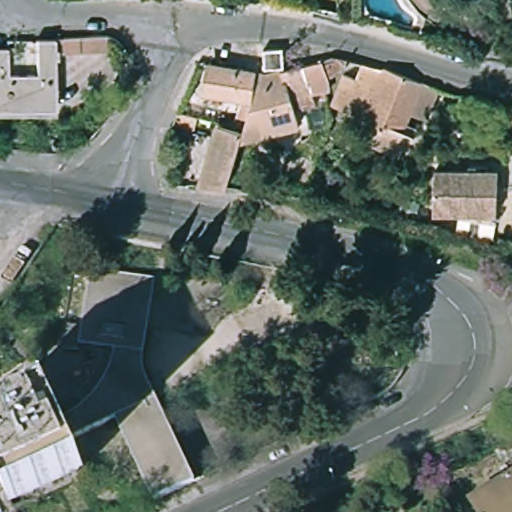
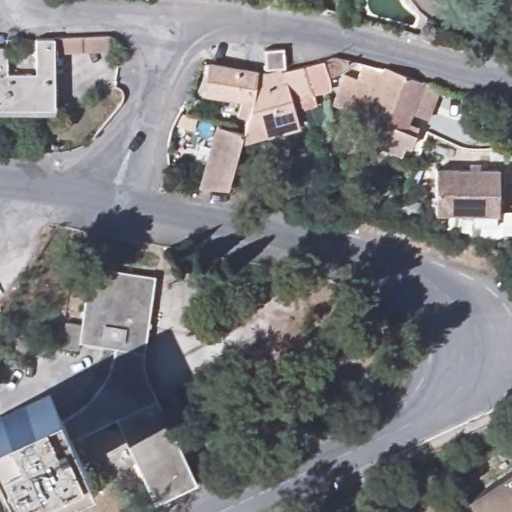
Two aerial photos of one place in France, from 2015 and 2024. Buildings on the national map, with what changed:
unchanged [(6,68),(32,68),(33,35),(53,34),(52,84),(46,84),(46,90),(45,96),(43,100),(38,103),(32,102),(30,99),(28,97),(0,98),(0,43),(6,43),(6,68)]
unchanged [(258,54),(278,53),(280,72),(259,74),(258,54)]
unchanged [(261,82),(304,72),(334,59),(358,65),(326,83),(318,86),(323,108),(317,109),(315,102),(308,103),(311,118),(300,120),(299,117),(287,119),(291,137),(234,152),(237,137),(238,132),(240,125),(250,80),(261,82)]
unchanged [(421,129),(415,147),(411,146),(408,155),(378,146),(384,126),(344,114),(354,84),(365,87),(371,68),(377,69),(407,77),(421,84),(438,91),(429,119),(412,114),(408,125),(421,129)]
unchanged [(240,125),(224,121),(228,104),(198,97),(197,102),(185,100),(203,70),(250,80),(240,125)]
unchanged [(190,133),(170,128),(174,114),(191,117),(190,133)]
unchanged [(203,194),(215,133),(237,137),(234,152),(223,198),(203,194)]
unchanged [(457,214),(457,211),(433,212),(431,169),(493,166),(495,209),(494,218),(457,214)]
unchanged [(72,405),(78,402),(83,397),(86,394),(93,386),(99,377),(102,372),(105,368),(106,364),(109,360),(111,355),(113,350),(114,346),(115,341),(81,331),(80,335),(78,334),(79,337),(65,333),(65,330),(72,308),(81,311),(86,312),(99,265),(162,282),(149,332),(148,337),(147,343),(146,347),(144,357),(144,363),(145,368),(146,374),(148,380),(150,386),(153,392),(193,480),(152,499),(113,415),(69,435),(58,412),(61,411),(67,408),(72,405)]
unchanged [(58,412),(69,435),(81,463),(6,497),(0,484),(0,412),(48,390),(58,412)]
unchanged [(476,512),(468,500),(512,473),(512,512),(476,512)]

